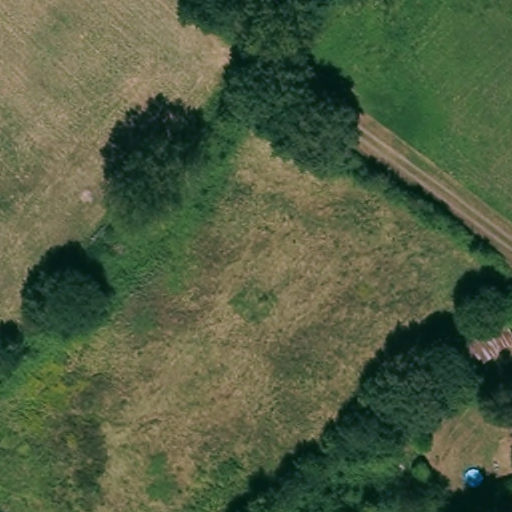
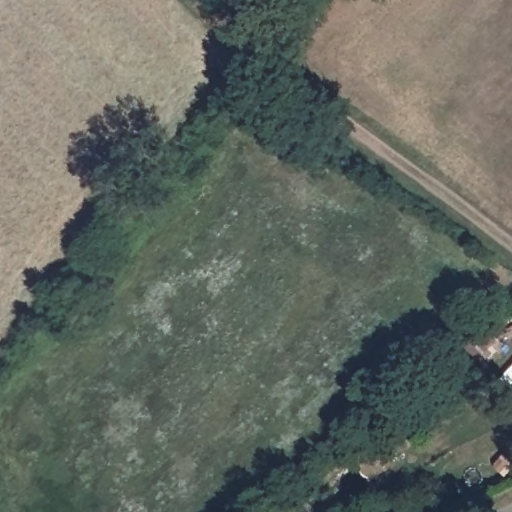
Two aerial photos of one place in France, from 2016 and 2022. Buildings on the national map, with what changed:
unchanged [(504,309),(512,321),(512,330),(478,361),(464,344),(504,309)]

